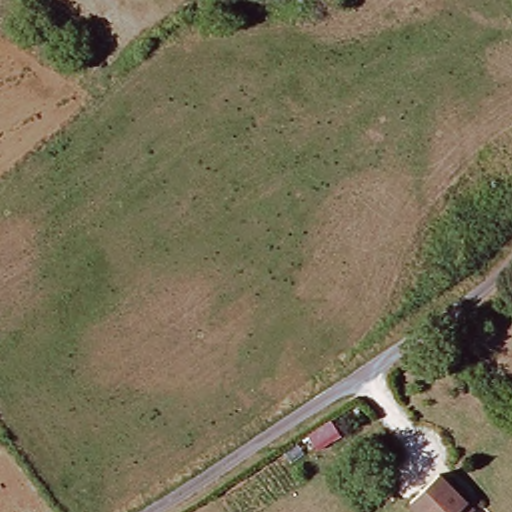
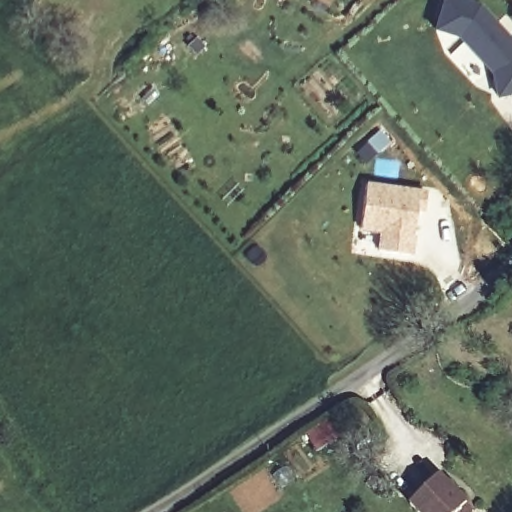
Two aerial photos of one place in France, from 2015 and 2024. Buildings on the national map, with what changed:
new [(480,8),(512,43),(512,96),(498,99),(493,75),(460,38),(437,31),(447,0),(459,0),(480,8)]
new [(365,186),(417,193),(410,256),(357,249),(365,186)]
unchanged [(476,506),(472,511),(474,512),(420,512),(414,507),(441,476),(476,506)]

